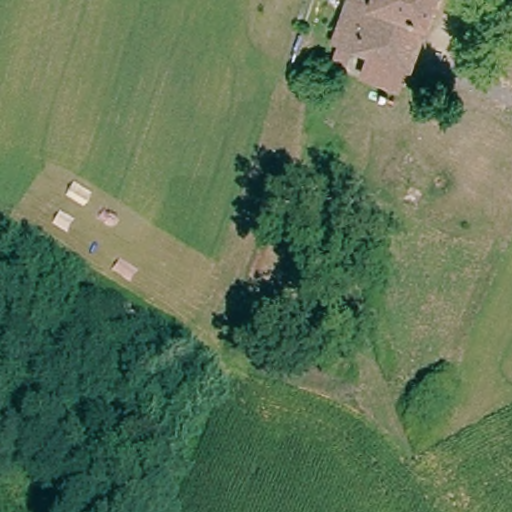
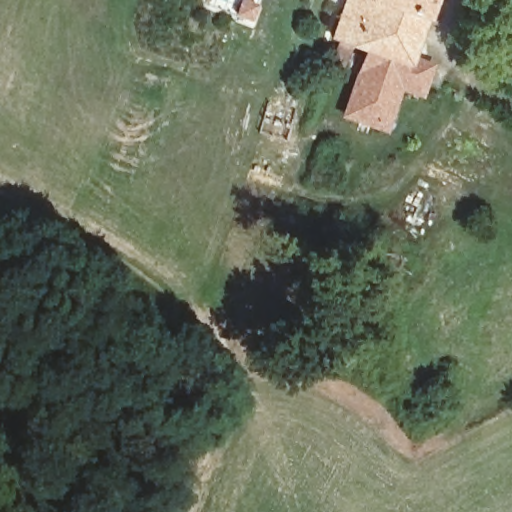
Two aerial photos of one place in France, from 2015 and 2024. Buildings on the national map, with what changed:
unchanged [(409,67),(406,67),(369,55),(352,49),(343,46),(337,44),(332,42),(346,0),(432,0),(409,67)]
new [(369,55),(406,67),(409,67),(412,57),(437,65),(424,100),(404,92),(389,137),(341,120),(365,53),(369,55)]

